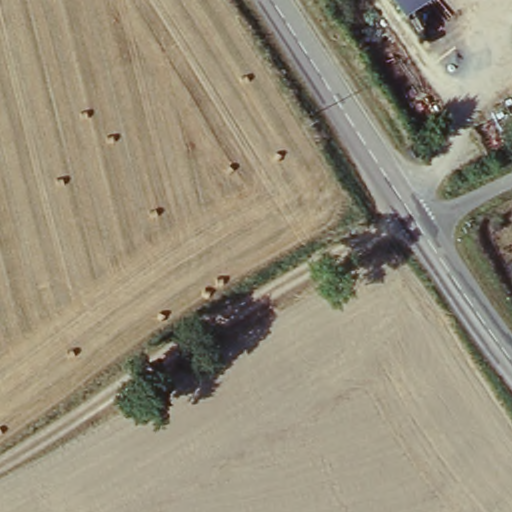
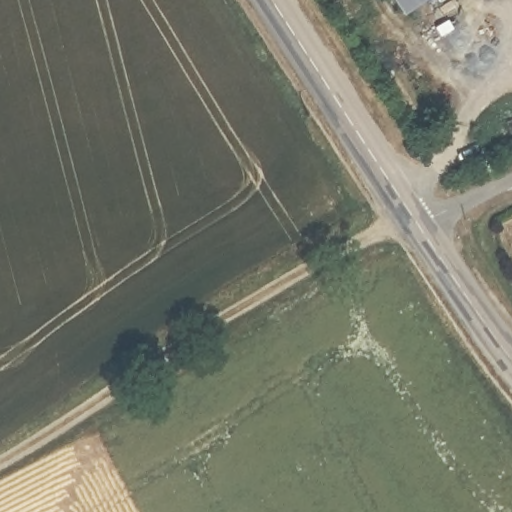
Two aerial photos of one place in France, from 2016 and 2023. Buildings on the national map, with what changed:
unchanged [(389,14),(381,0),(414,0),(389,14)]

